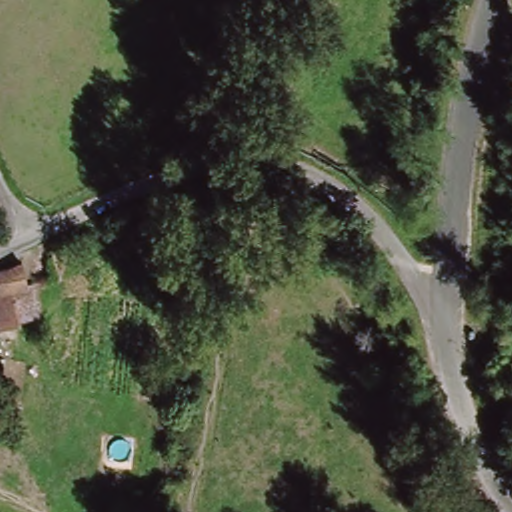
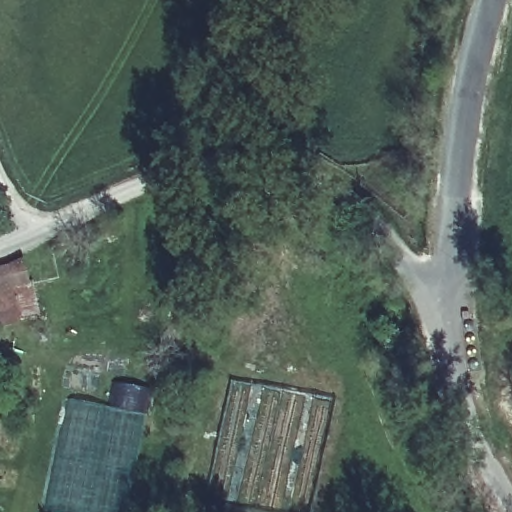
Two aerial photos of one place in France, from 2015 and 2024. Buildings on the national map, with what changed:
unchanged [(0,301),(0,272),(36,265),(46,314),(7,328),(0,301)]
unchanged [(0,365),(0,345),(2,345),(0,365)]
new [(51,469),(68,399),(121,408),(125,387),(153,392),(147,413),(138,451),(120,512),(62,512),(44,508),(51,469)]

